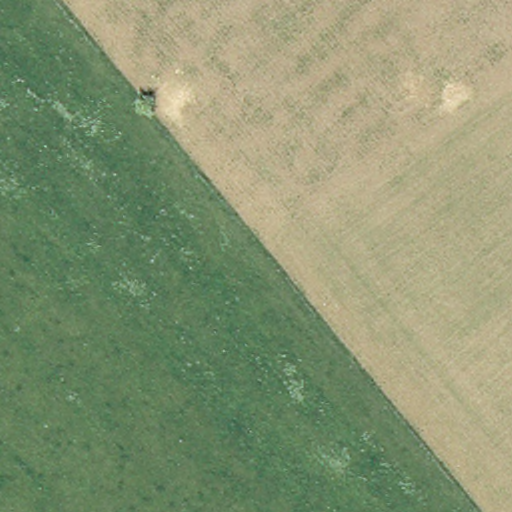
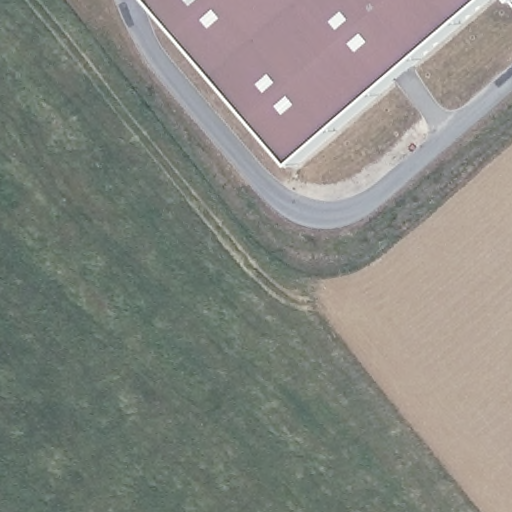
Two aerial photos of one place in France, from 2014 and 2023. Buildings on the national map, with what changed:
new [(296,163),(154,0),(485,0),(296,163)]

